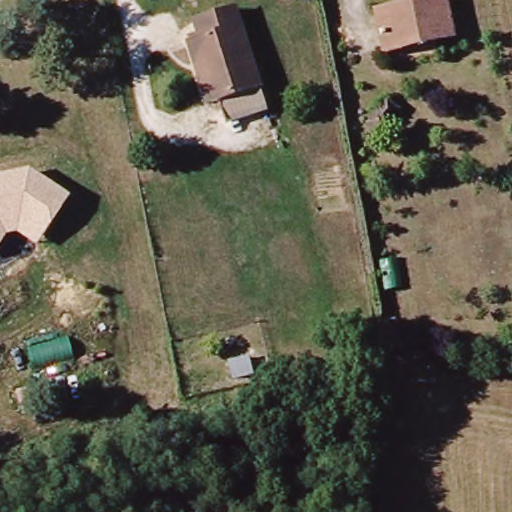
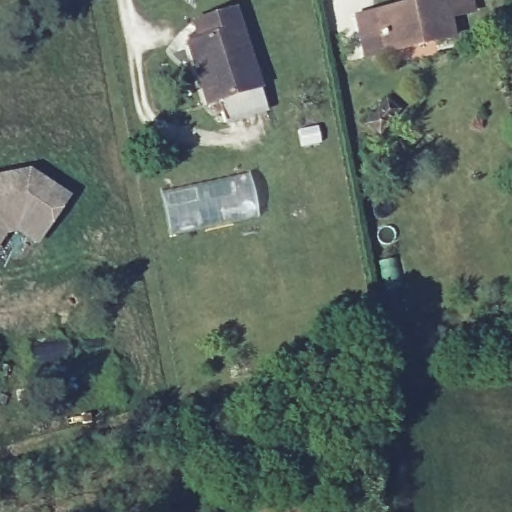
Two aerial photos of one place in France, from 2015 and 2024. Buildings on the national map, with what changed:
unchanged [(434,0),(437,0),(445,41),(416,47),(413,40),(376,48),(369,13),(434,0)]
unchanged [(183,42),(195,39),(189,20),(232,6),(257,90),(216,101),(202,106),(189,65),(183,42)]
unchanged [(65,194),(35,240),(18,227),(6,230),(0,238),(0,175),(29,169),(65,194)]
new [(249,170),(260,217),(168,238),(157,189),(249,170)]

